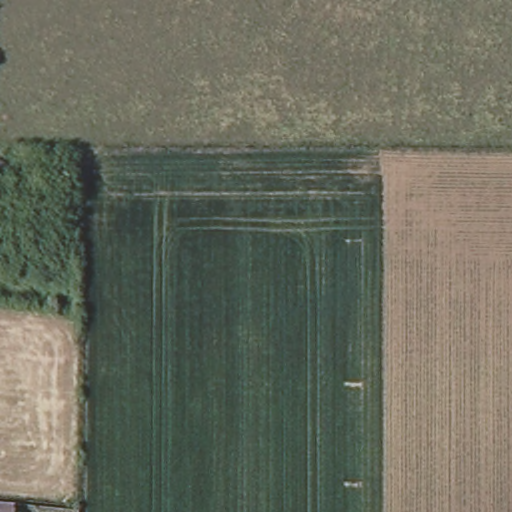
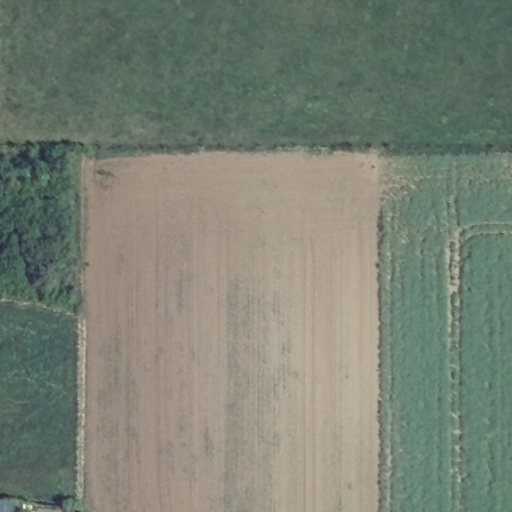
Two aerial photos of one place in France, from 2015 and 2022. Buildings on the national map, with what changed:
unchanged [(0,512),(0,506),(17,508),(16,512),(0,512)]

